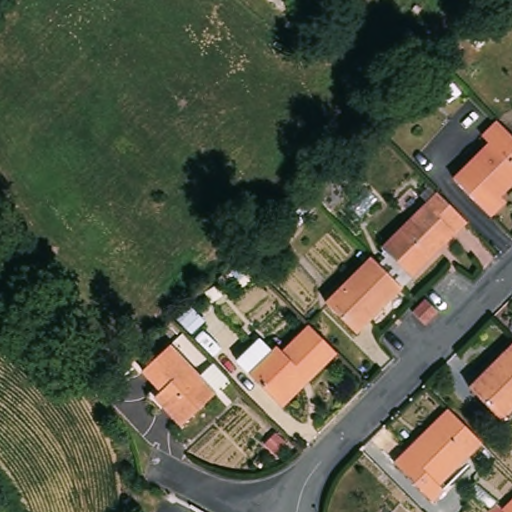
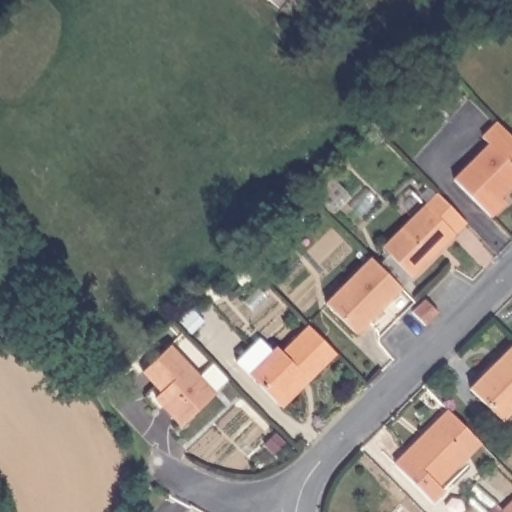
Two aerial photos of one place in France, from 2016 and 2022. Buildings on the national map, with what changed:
unchanged [(512,133),(512,187),(503,196),(507,201),(492,215),(456,180),(492,144),(485,137),(501,122),(512,133)]
unchanged [(469,222),(414,276),(385,246),(439,192),(469,222)]
unchanged [(404,286),(357,332),(327,302),(374,256),(404,286)]
unchanged [(440,311),(426,323),(414,311),(428,297),(440,311)]
unchanged [(283,401),(244,361),(267,339),(278,351),(283,346),(289,352),(316,325),(343,353),(315,381),(288,407),(283,401)]
unchanged [(189,425),(161,397),(168,391),(150,372),(176,346),(205,375),(219,361),(234,376),(220,391),(222,393),(189,425)]
unchanged [(503,419),(471,388),(512,348),(512,410),(503,419)]
unchanged [(483,442),(440,485),(445,490),(432,502),(395,465),(449,409),(483,442)]

